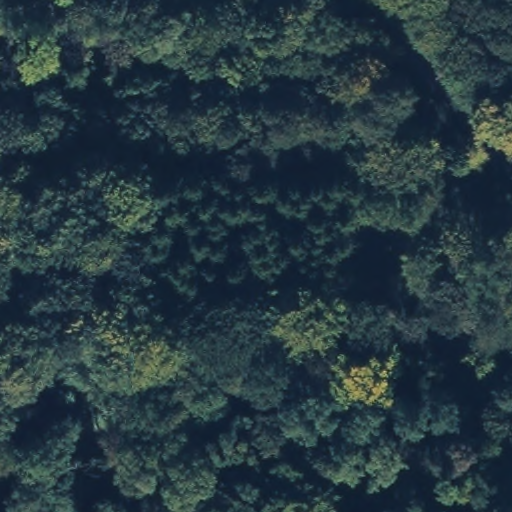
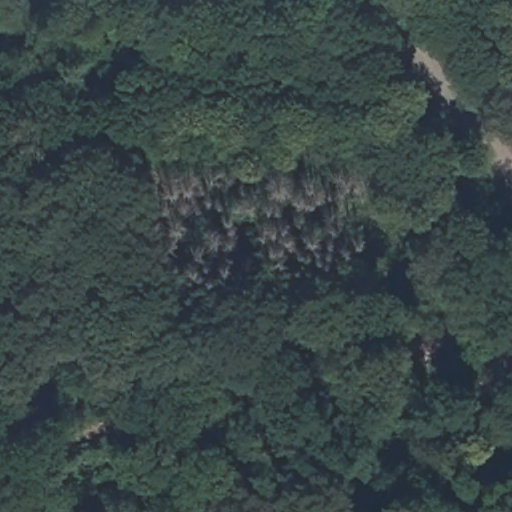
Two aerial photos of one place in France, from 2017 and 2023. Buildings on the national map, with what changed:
unchanged [(390,387),(399,433),(354,437),(349,402),(390,387)]

